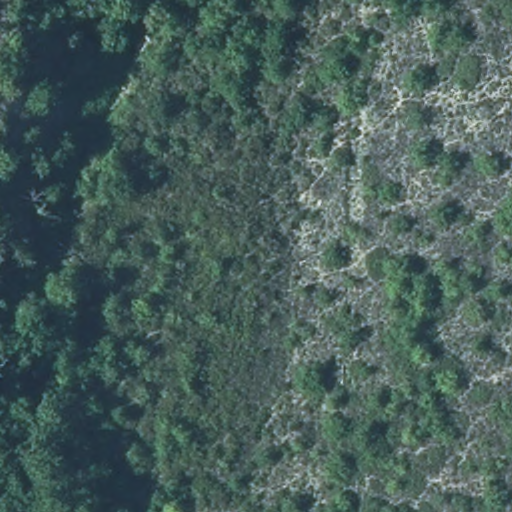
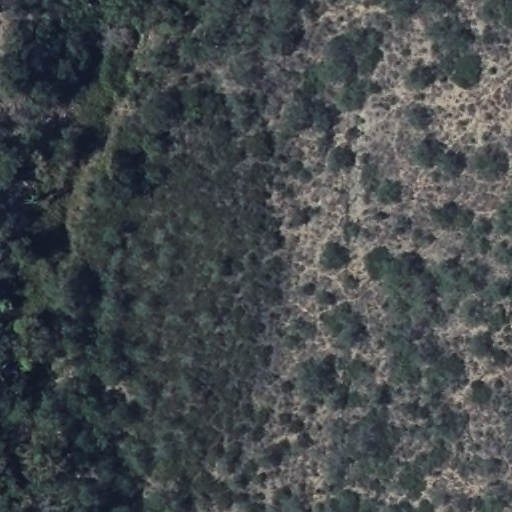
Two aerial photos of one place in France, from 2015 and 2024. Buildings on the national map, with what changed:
[]

